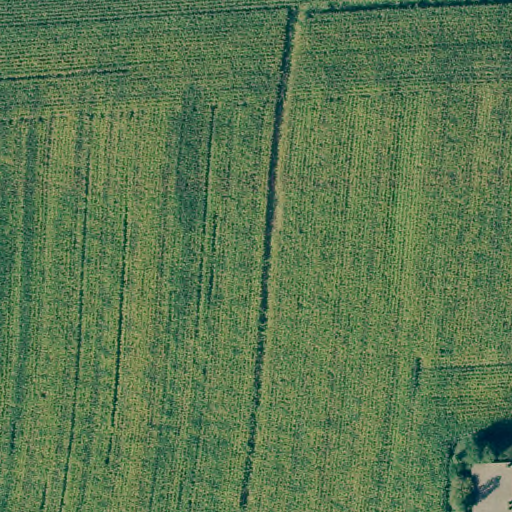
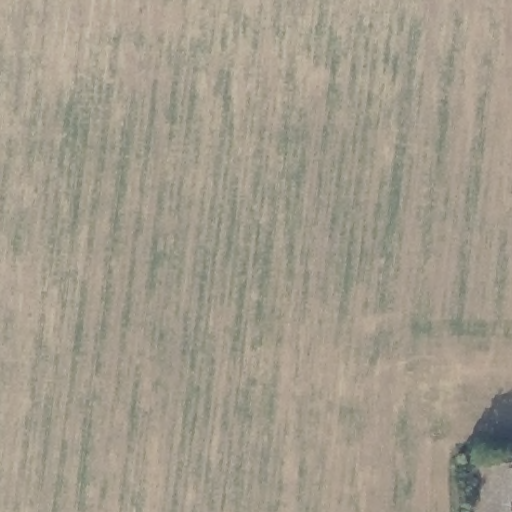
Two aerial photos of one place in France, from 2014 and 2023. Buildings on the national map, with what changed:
unchanged [(472,466),(512,463),(512,512),(473,512),(472,466)]

